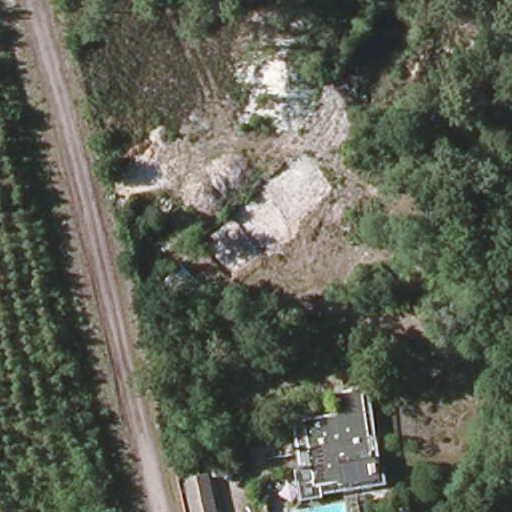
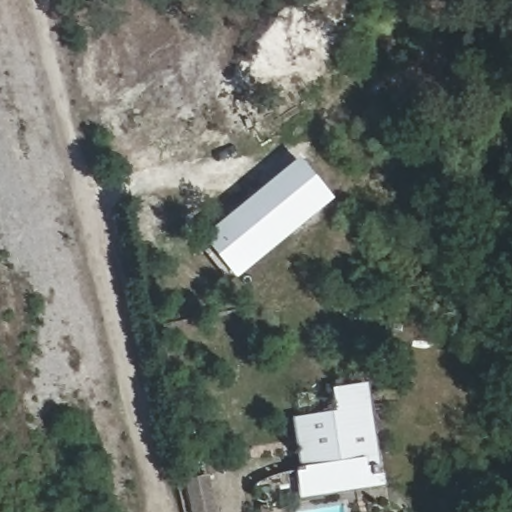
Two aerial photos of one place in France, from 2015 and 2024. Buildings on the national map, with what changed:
new [(235,279),(202,238),(298,157),(333,199),(235,279)]
unchanged [(297,507),(293,475),(300,473),(295,450),(306,448),(303,425),(334,420),(330,399),(360,396),(369,463),(375,461),(380,489),(357,493),(356,486),(315,492),(316,503),(297,507)]
unchanged [(219,512),(193,512),(187,485),(212,481),(219,512)]

